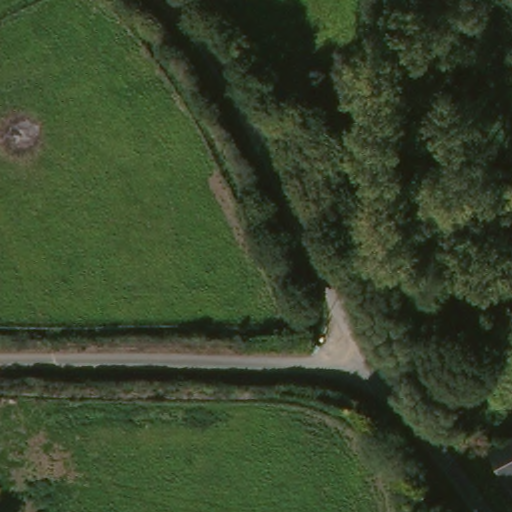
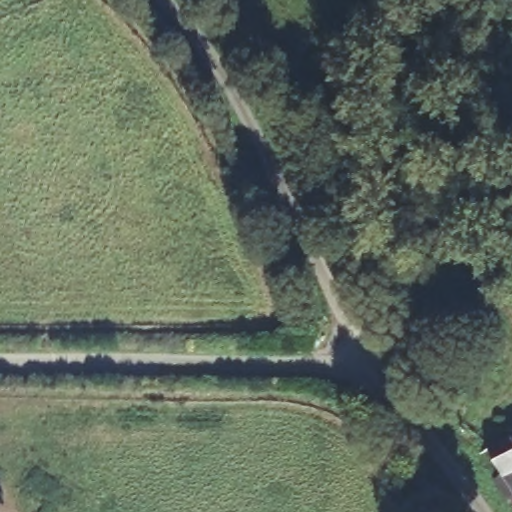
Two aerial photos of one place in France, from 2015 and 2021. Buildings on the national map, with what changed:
unchanged [(493,482),(499,478),(483,448),(512,433),(512,512),(509,512),(493,482)]

